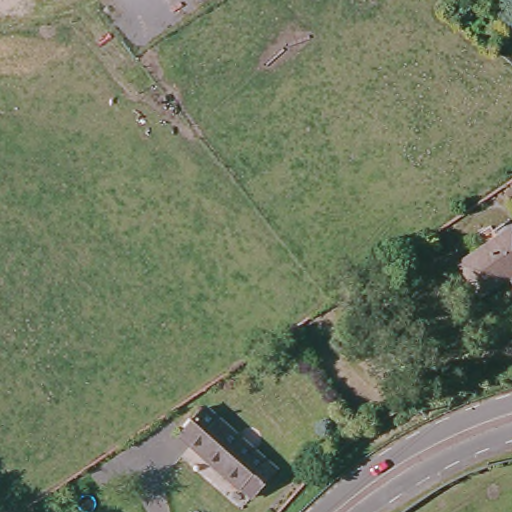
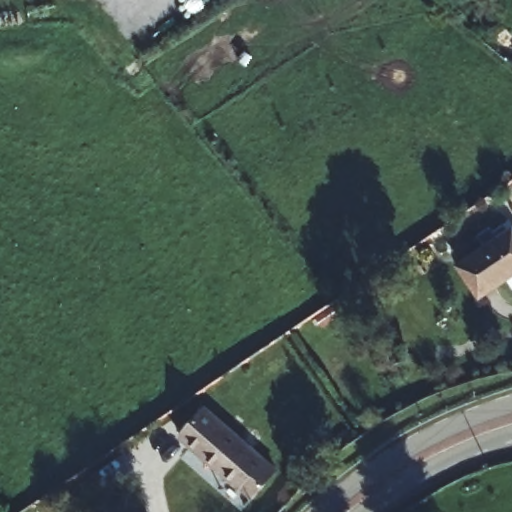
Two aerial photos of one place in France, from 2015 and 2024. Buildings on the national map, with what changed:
unchanged [(478,291),(460,261),(486,243),(478,231),(488,224),(496,237),(511,226),(512,228),(512,283),(505,274),(478,291)]
unchanged [(203,404),(275,467),(250,495),(178,432),(203,404)]

